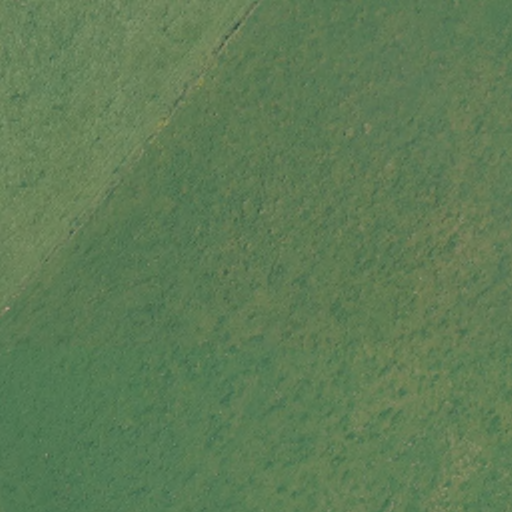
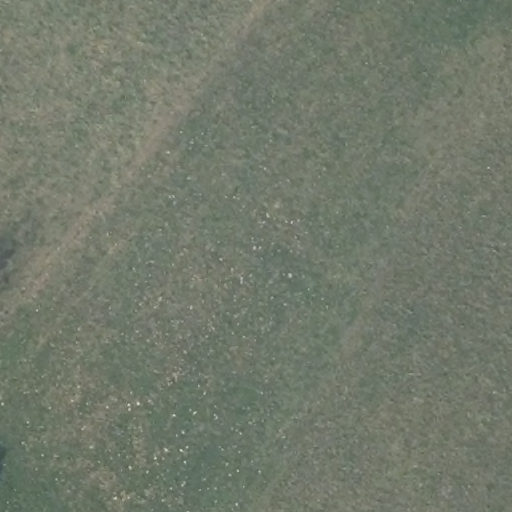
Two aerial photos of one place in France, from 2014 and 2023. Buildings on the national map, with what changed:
[]

